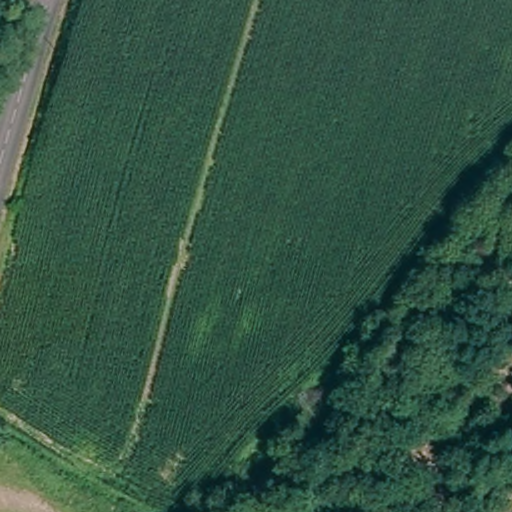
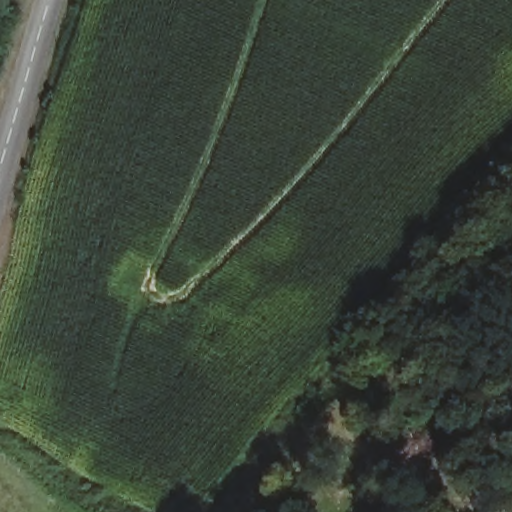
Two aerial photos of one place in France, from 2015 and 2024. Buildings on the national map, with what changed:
[]

